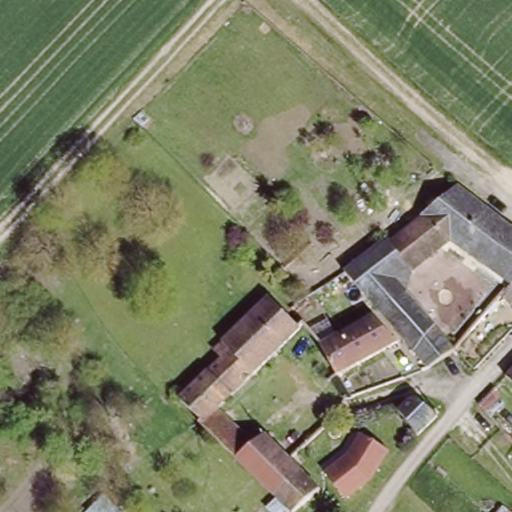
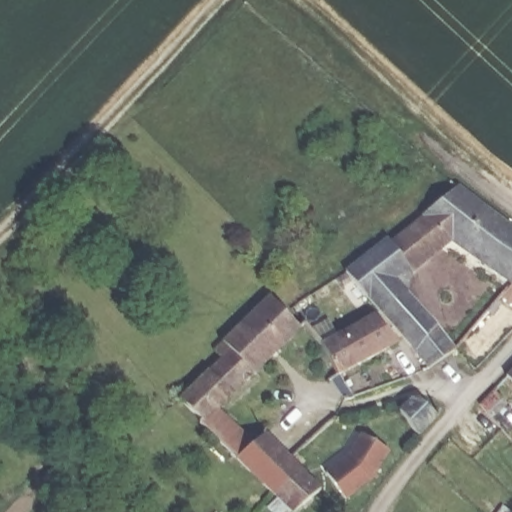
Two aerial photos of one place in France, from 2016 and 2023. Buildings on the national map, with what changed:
unchanged [(510,284),(450,242),(409,273),(414,278),(404,287),(455,349),(427,368),(399,340),(337,373),(317,340),(378,312),(345,271),(387,240),(389,242),(459,187),(512,225),(512,304),(502,297),(510,284)]
unchanged [(262,481),(212,432),(206,426),(210,423),(210,422),(185,397),(190,392),(200,382),(236,347),(232,343),(227,338),(279,301),(280,300),(306,336),(252,373),(222,408),(260,446),(267,438),(292,463),(302,472),(277,497),(262,481)]
unchanged [(512,373),(512,383),(507,378),(512,373)]
unchanged [(418,440),(399,418),(420,395),(441,415),(418,440)]
unchanged [(390,449),(373,477),(345,497),(323,471),(345,454),(354,435),(390,449)]
unchanged [(324,493),(305,512),(292,512),(280,500),(277,497),(302,472),(324,493)]
unchanged [(85,512),(105,492),(124,512),(85,512)]

